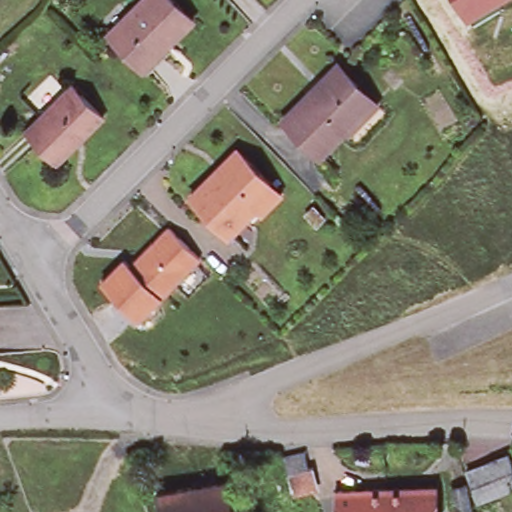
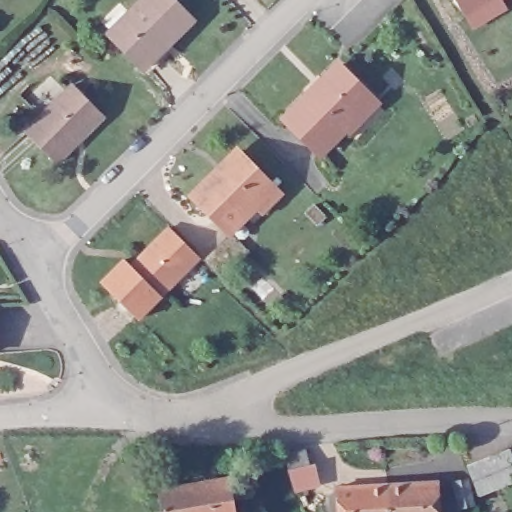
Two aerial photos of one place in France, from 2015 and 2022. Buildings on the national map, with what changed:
unchanged [(169,48),(163,43),(137,69),(107,39),(146,0),(169,0),(193,24),(169,48)]
unchanged [(456,0),(501,0),(467,19),(456,0)]
unchanged [(350,135),(344,130),(318,156),(283,121),(337,68),(372,101),(378,107),(350,135)]
unchanged [(78,143),(57,165),(25,134),(70,86),(97,112),(103,117),(78,143)]
unchanged [(260,216),(252,210),(229,233),(190,196),(215,170),(217,171),(237,150),(270,181),(269,183),(280,193),(260,216)]
unchanged [(122,257),(131,264),(168,227),(201,260),(164,299),(141,322),(100,280),(122,257)]
unchanged [(316,480),(292,488),(287,471),(281,455),(302,450),(305,465),(312,464),(316,480)]
unchanged [(510,452),(512,459),(512,484),(476,495),(466,466),(510,452)]
unchanged [(465,478),(470,505),(456,507),(450,480),(465,478)]
unchanged [(228,479),(233,512),(159,512),(155,489),(228,479)]
unchanged [(333,490),(387,487),(439,484),(440,512),(335,512),(333,490)]

